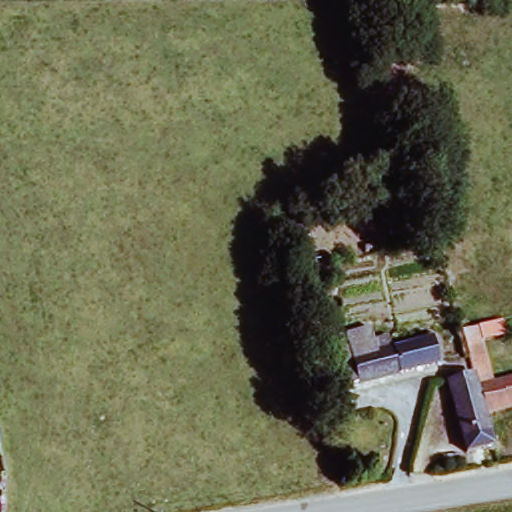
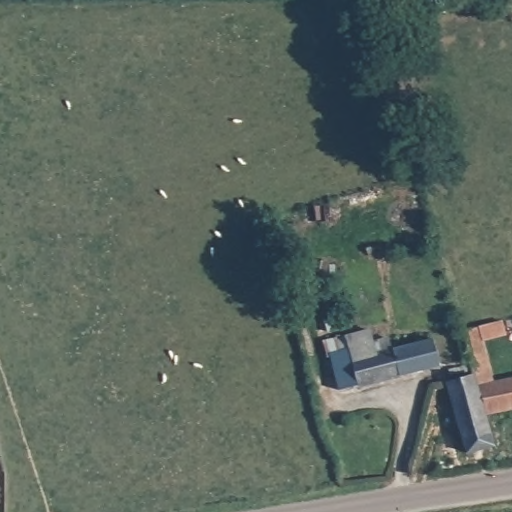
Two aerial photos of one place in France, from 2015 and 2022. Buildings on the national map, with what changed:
unchanged [(483,311),(494,359),(474,364),(472,356),(462,317),(483,311)]
unchanged [(314,368),(311,357),(326,354),(323,337),(349,332),(354,345),(368,341),(373,355),(437,341),(443,363),(341,386),(319,391),(314,368)]
unchanged [(472,356),(474,364),(486,411),(493,435),(467,442),(444,368),(443,363),(472,356)]
unchanged [(474,364),(494,359),(512,356),(512,406),(486,411),(474,364)]

